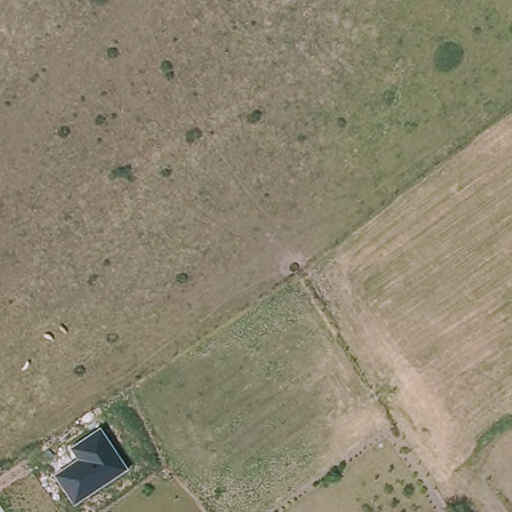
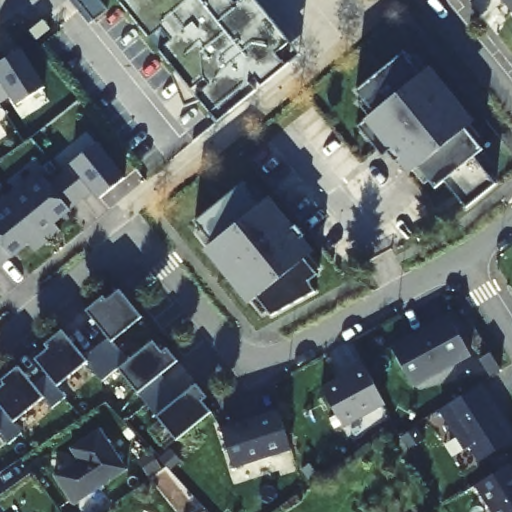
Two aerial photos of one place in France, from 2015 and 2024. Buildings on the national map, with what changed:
new [(94,21),(77,0),(100,0),(108,10),(94,21)]
new [(239,0),(256,0),(289,41),(276,51),(276,63),(272,71),(265,76),(252,86),(255,93),(218,121),(160,49),(174,39),(163,27),(150,36),(122,0),(231,0),(234,4),(239,0)]
new [(512,0),(512,10),(504,0),(512,0)]
new [(20,50),(45,88),(17,105),(12,96),(0,103),(0,63),(20,50)]
new [(368,141),(357,126),(373,113),(355,91),(403,53),(421,75),(425,71),(470,125),(465,129),(483,150),(474,156),(496,184),(466,208),(445,181),(435,188),(418,166),(412,171),(393,148),(388,153),(382,157),(368,141)]
new [(96,143),(125,179),(100,198),(71,163),(96,143)]
new [(39,171),(70,210),(55,223),(60,230),(47,241),(9,195),(39,171)]
new [(261,204),(277,191),(289,204),(302,221),(297,225),(305,235),(299,240),(311,254),(305,258),(318,274),(310,281),(316,292),(271,316),(256,298),(252,302),(207,247),(212,243),(195,222),(243,183),(261,204)]
new [(9,195),(47,241),(34,252),(28,245),(12,257),(0,242),(0,202),(9,195)]
new [(112,341),(128,360),(115,371),(96,349),(108,339),(85,311),(103,296),(107,300),(120,290),(142,317),(112,341)]
new [(472,357),(417,393),(392,355),(416,339),(417,342),(423,338),(423,335),(447,319),(472,357)]
new [(85,358),(96,349),(115,371),(102,382),(86,363),(57,387),(35,359),(47,349),(44,345),(62,330),(85,357),(85,358)]
new [(117,369),(153,340),(162,352),(167,348),(178,361),(161,375),(170,386),(147,405),(117,369)]
new [(491,377),(480,360),(491,353),(502,370),(491,377)]
new [(350,373),(348,370),(362,362),(385,404),(342,427),(321,388),(350,373)]
new [(66,397),(52,409),(44,398),(13,423),(0,406),(0,387),(3,384),(0,380),(18,365),(35,385),(47,375),(57,387),(66,397)]
new [(147,405),(170,386),(180,398),(196,384),(207,397),(202,401),(211,412),(176,441),(147,405)]
new [(512,433),(512,440),(480,461),(470,446),(465,450),(440,409),(480,384),(512,433)]
new [(3,410),(22,433),(8,444),(0,434),(0,413),(3,410)]
new [(279,411),(291,449),(233,467),(221,429),(279,411)]
unchanged [(68,467),(73,468),(78,464),(76,462),(78,460),(71,449),(100,429),(127,470),(75,505),(55,476),(68,467)]
new [(512,467),(512,512),(493,512),(475,485),(510,463),(512,467)]

